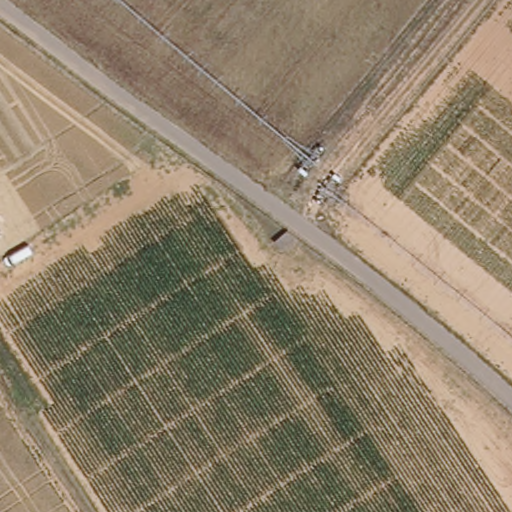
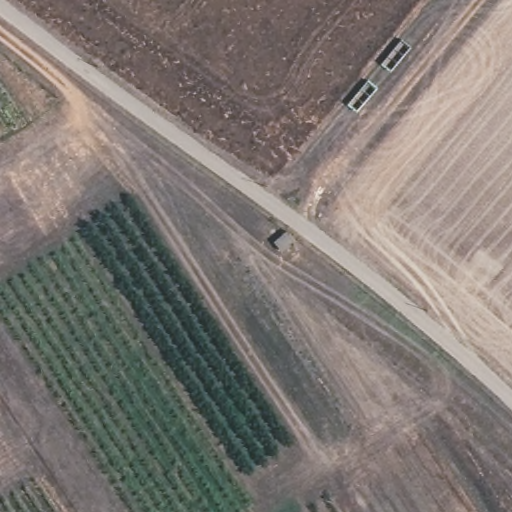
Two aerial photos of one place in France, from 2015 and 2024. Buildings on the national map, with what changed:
unchanged [(283,227),(304,231),(298,250),(277,246),(283,227)]

